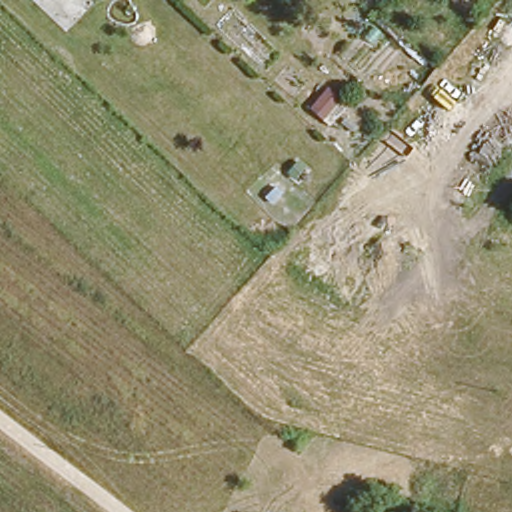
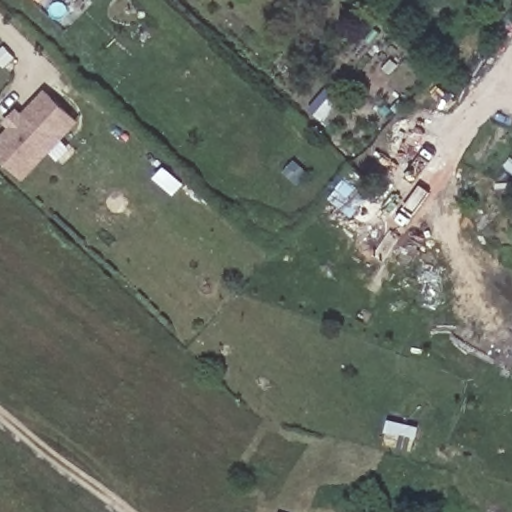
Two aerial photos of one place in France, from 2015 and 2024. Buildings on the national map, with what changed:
demolished [(33,0),(36,0),(35,1),(33,0)]
new [(26,180),(0,155),(0,138),(9,127),(5,124),(19,109),(24,112),(46,90),(81,122),(26,180)]

